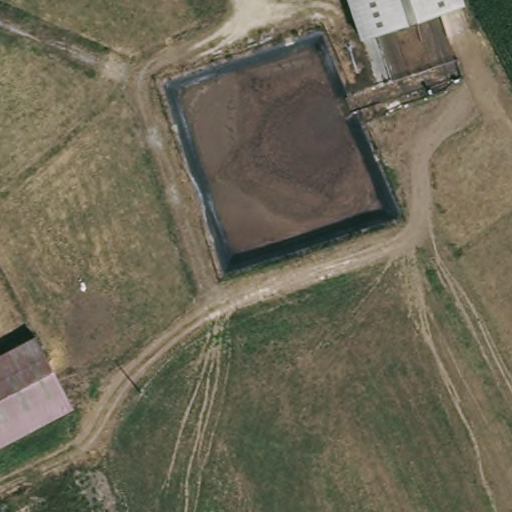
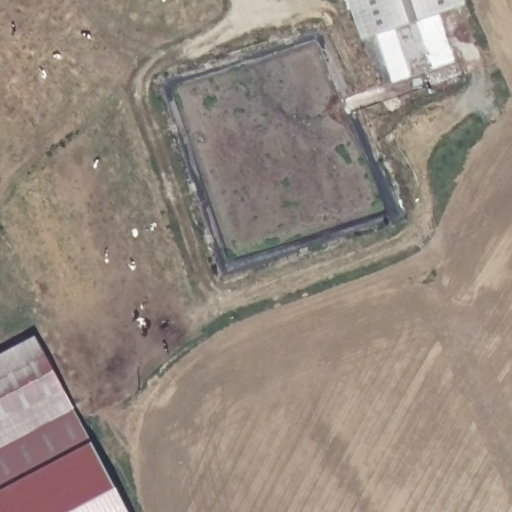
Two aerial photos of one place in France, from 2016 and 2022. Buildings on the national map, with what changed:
unchanged [(363,40),(350,0),(465,0),(466,5),(363,40)]
unchanged [(72,412),(0,450),(0,353),(35,335),(72,412)]
new [(126,512),(0,512),(0,450),(72,412),(89,441),(126,512)]

